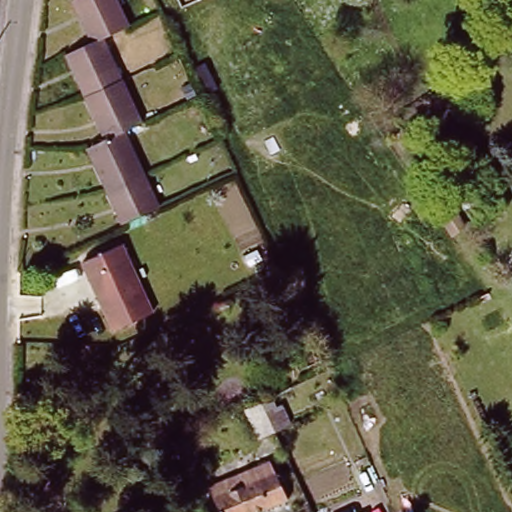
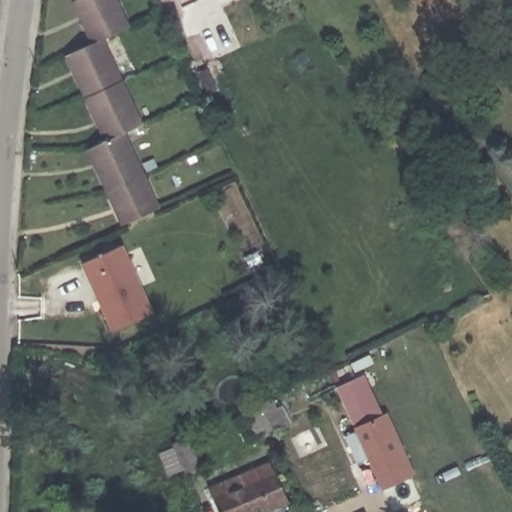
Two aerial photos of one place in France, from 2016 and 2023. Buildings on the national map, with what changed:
unchanged [(103,35),(93,40),(83,18),(75,0),(118,0),(128,24),(103,35)]
unchanged [(124,129),(108,136),(92,103),(86,89),(69,50),(93,40),(103,35),(121,74),(127,86),(143,120),(124,129)]
unchanged [(143,173),(108,189),(100,169),(89,145),(93,144),(108,136),(124,129),(143,173)]
unchanged [(143,173),(158,205),(123,222),(108,189),(143,173)]
unchanged [(124,242),(155,312),(110,331),(78,260),(124,242)]
new [(383,492),(368,459),(360,464),(346,434),(354,430),(353,428),(357,427),(339,386),(366,374),(385,414),(390,413),(417,474),(383,492)]
unchanged [(277,435),(271,438),(261,443),(257,433),(248,411),(258,407),(262,404),(273,400),(279,412),(285,409),(288,419),(293,429),(277,435)]
unchanged [(271,464),(287,504),(265,512),(220,512),(210,489),(271,464)]

